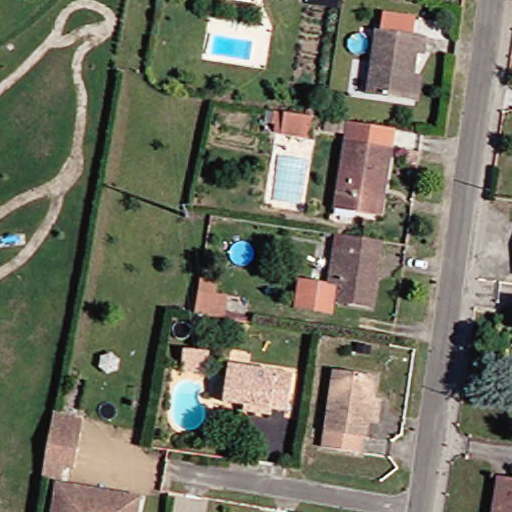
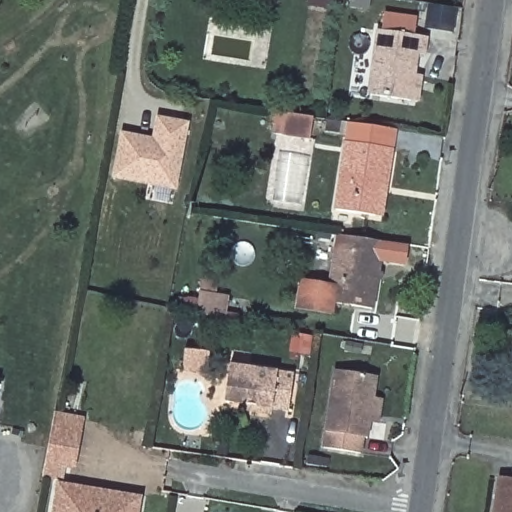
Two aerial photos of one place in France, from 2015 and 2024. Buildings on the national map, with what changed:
unchanged [(420,98),(413,97),(372,91),(382,27),(430,33),(427,51),(420,50),(417,71),(423,72),(420,98)]
unchanged [(278,109),(285,110),(307,113),(303,135),(276,131),(276,129),(278,109)]
new [(153,139),(157,120),(189,126),(177,190),(115,178),(121,133),(153,139)]
unchanged [(377,216),(338,209),(351,142),(397,151),(389,188),(383,217),(377,216)]
unchanged [(388,232),(378,300),(342,293),(340,304),(305,298),(309,271),(338,275),(342,242),(345,226),(354,227),(365,229),(388,232)]
unchanged [(390,265),(388,275),(383,274),(384,265),(390,265)]
unchanged [(227,297),(224,319),(195,314),(199,292),(227,297)]
unchanged [(244,411),(245,405),(222,402),(228,366),(292,375),(287,412),(270,409),(268,415),(244,411)]
unchanged [(366,432),(365,448),(327,443),(338,367),(379,373),(376,393),(386,396),(382,420),(373,418),(371,433),(366,432)]
unchanged [(69,464),(67,477),(48,473),(55,435),(57,426),(60,411),(90,417),(87,432),(80,466),(69,464)]
unchanged [(507,477),(512,478),(512,512),(502,512),(507,477)]
unchanged [(61,481),(94,487),(97,487),(140,495),(145,496),(144,503),(142,512),(55,512),(61,481)]

